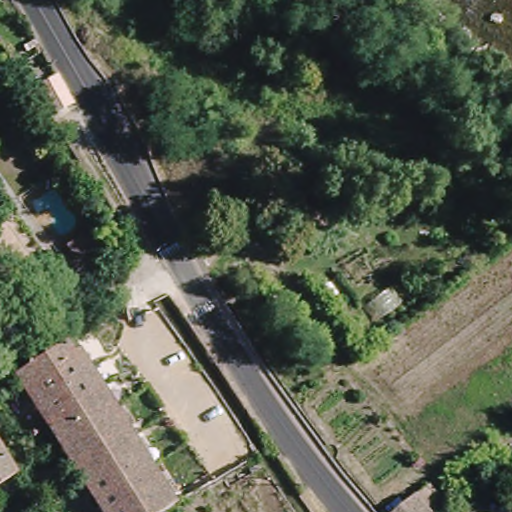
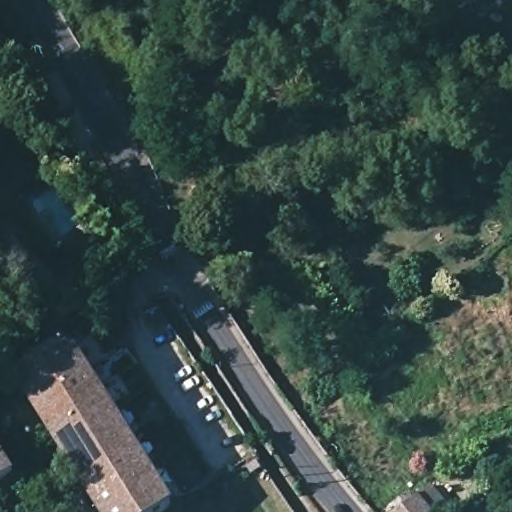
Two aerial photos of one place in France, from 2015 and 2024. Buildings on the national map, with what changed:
unchanged [(56,71),(73,100),(54,109),(35,83),(56,71)]
unchanged [(34,266),(1,290),(0,289),(0,221),(34,266)]
unchanged [(86,231),(98,253),(75,267),(61,243),(86,231)]
unchanged [(11,379),(56,352),(70,345),(170,512),(94,512),(63,463),(11,379)]
unchanged [(20,482),(0,494),(0,452),(20,482)]
unchanged [(437,512),(404,512),(422,496),(437,512)]

